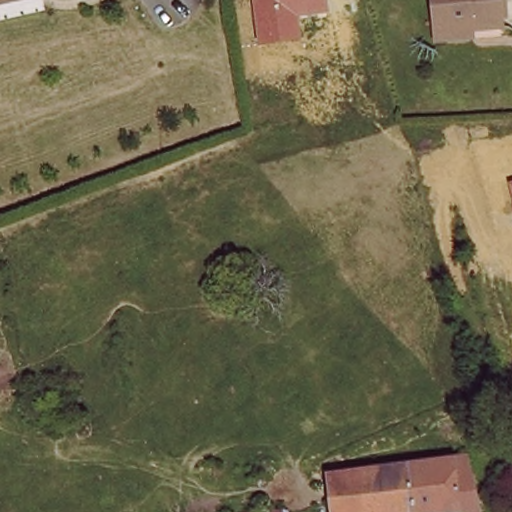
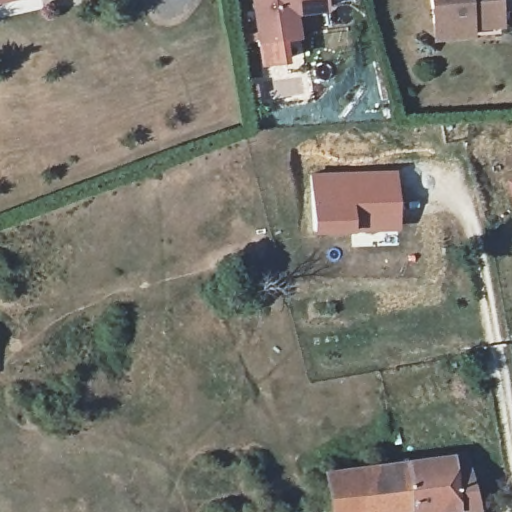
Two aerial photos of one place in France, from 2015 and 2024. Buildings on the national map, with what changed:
unchanged [(0,1),(0,0),(4,0),(0,1)]
unchanged [(252,0),(325,0),(327,12),(298,17),(301,41),(258,44),(252,0)]
unchanged [(435,35),(433,19),(431,0),(498,0),(500,20),(475,22),(475,15),(470,16),(470,31),(435,35)]
new [(258,44),(285,42),(288,62),(260,66),(258,44)]
new [(397,171),(400,231),(351,232),(313,233),(310,174),(397,171)]
unchanged [(512,193),(509,180),(512,179),(512,193)]
unchanged [(470,512),(469,508),(424,512),(326,512),(321,473),(332,472),(458,455),(473,512),(470,512)]
unchanged [(288,512),(227,512),(286,503),(288,512)]

